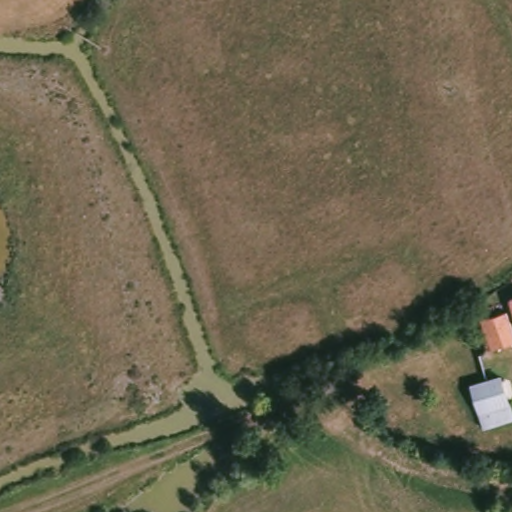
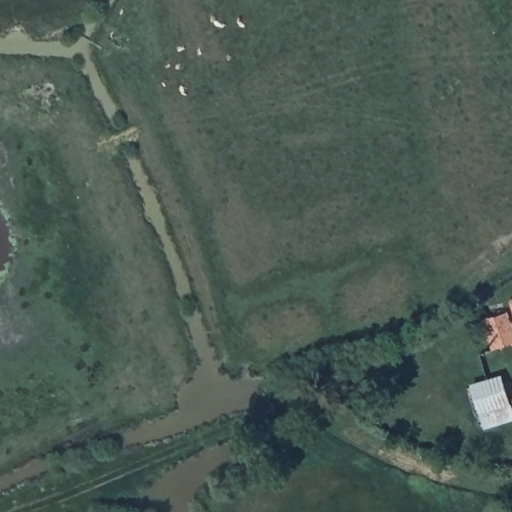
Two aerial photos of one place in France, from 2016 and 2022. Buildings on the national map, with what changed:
unchanged [(503,315),(512,345),(512,349),(492,354),(484,320),(503,315)]
unchanged [(472,388),(503,380),(511,424),(479,430),(472,388)]

